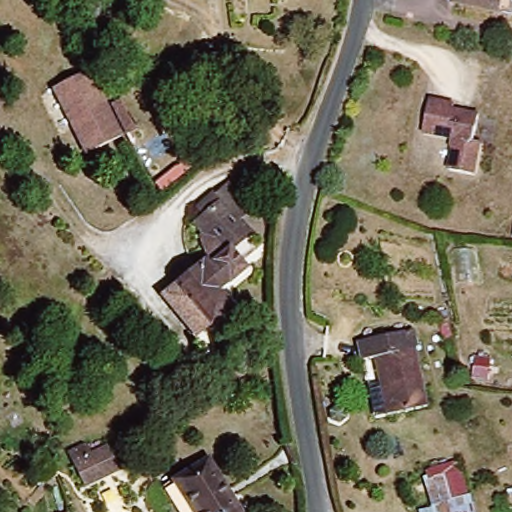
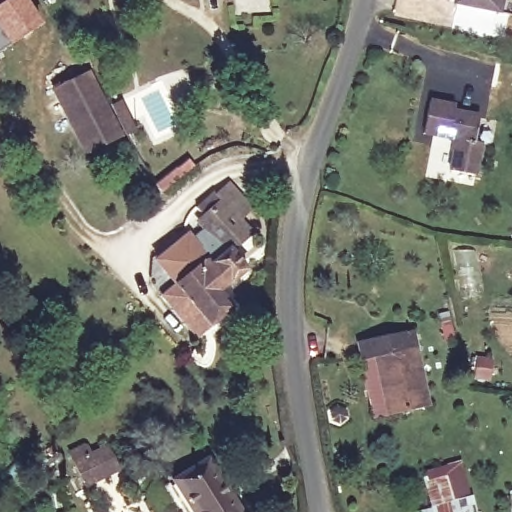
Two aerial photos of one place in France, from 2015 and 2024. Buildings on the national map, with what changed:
new [(0,51),(0,0),(26,0),(41,25),(8,47),(0,51)]
unchanged [(461,1),(461,0),(509,0),(507,10),(461,1)]
unchanged [(93,68),(125,143),(88,158),(55,85),(93,68)]
unchanged [(455,144),(424,137),(433,100),(456,105),(454,111),(480,116),(476,142),(484,146),(477,178),(449,170),(455,144)]
unchanged [(211,265),(203,247),(221,240),(215,227),(222,222),(216,208),(236,201),(240,210),(261,202),(271,234),(256,240),(264,263),(247,270),(253,287),(226,299),(211,265)]
unchanged [(234,318),(192,337),(168,283),(211,265),(226,299),(234,318)]
unchanged [(414,332),(431,408),(392,418),(379,361),(367,365),(363,344),(414,332)]
unchanged [(75,447),(97,436),(100,444),(112,438),(123,461),(89,477),(75,447)]
unchanged [(238,512),(194,512),(179,479),(216,461),(238,512)]
unchanged [(453,466),(461,499),(434,507),(424,472),(453,466)]

